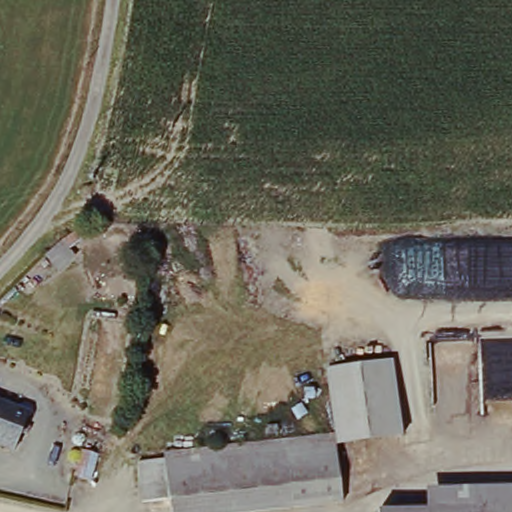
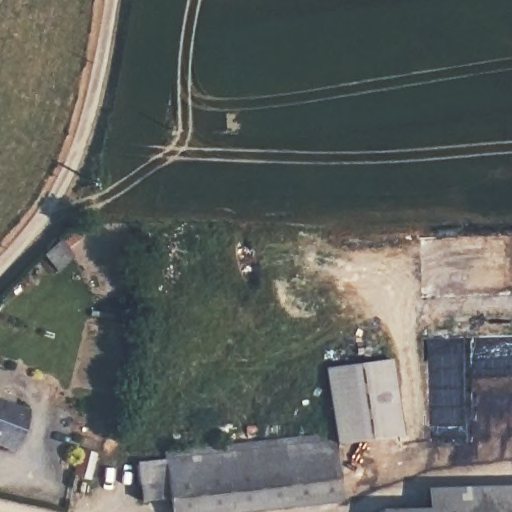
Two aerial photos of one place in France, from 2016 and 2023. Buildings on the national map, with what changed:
unchanged [(401,368),(409,443),(376,447),(343,450),(335,374),(381,370),(401,368)]
unchanged [(34,420),(19,458),(0,450),(0,407),(34,420)]
unchanged [(341,442),(347,508),(304,512),(174,512),(173,503),(145,505),(141,466),(168,464),(168,459),(341,442)]
unchanged [(102,452),(91,480),(72,474),(82,445),(102,452)]
unchanged [(512,489),(512,509),(435,512),(428,512),(431,492),(512,489)]
unchanged [(512,509),(512,512),(435,512),(512,509)]

